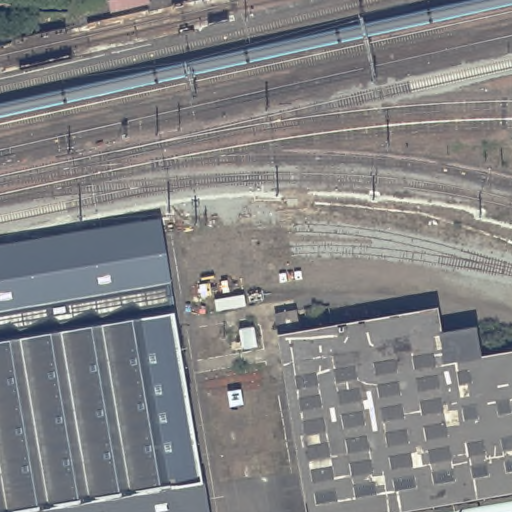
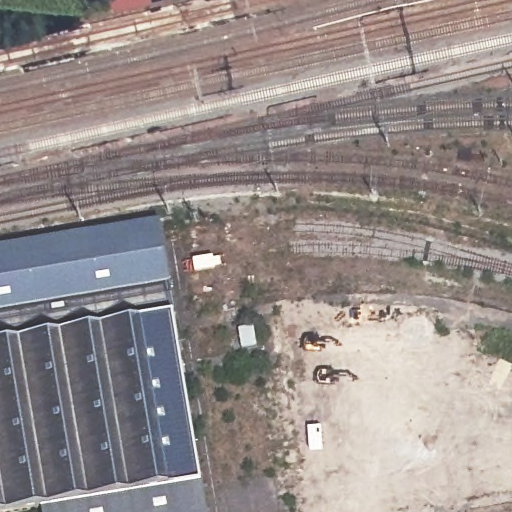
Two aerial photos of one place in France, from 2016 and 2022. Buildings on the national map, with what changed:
unchanged [(0,255),(164,228),(211,512),(0,512),(0,255)]
demolished [(284,341),(280,319),(301,316),(304,338),(441,314),(445,339),(480,333),(485,363),(512,359),(512,498),(428,512),(312,512),(283,341),(284,341)]

